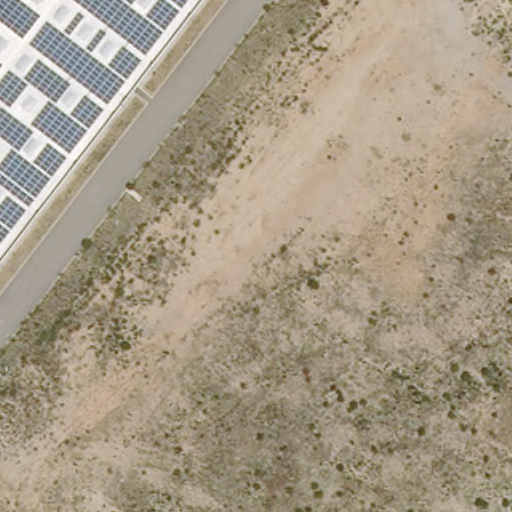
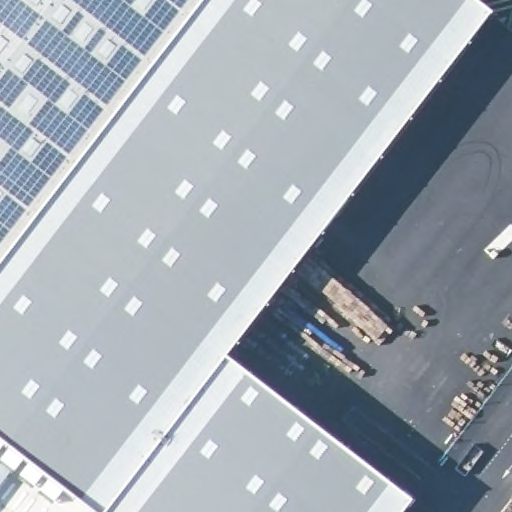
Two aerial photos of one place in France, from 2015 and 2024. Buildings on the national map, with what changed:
unchanged [(0,0),(207,0),(0,278),(0,0)]
new [(225,357),(410,501),(401,512),(86,512),(0,447),(0,278),(207,0),(471,0),(489,14),(225,357)]

